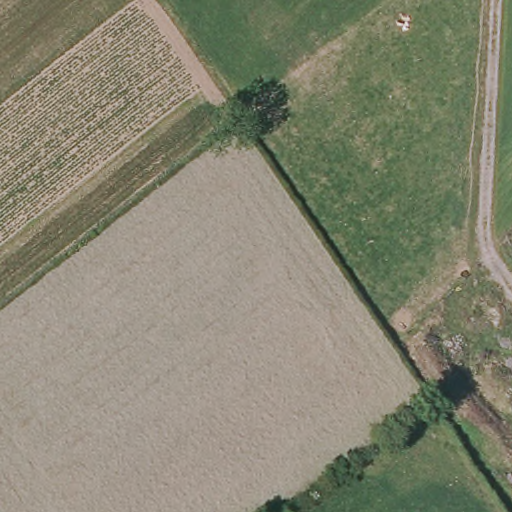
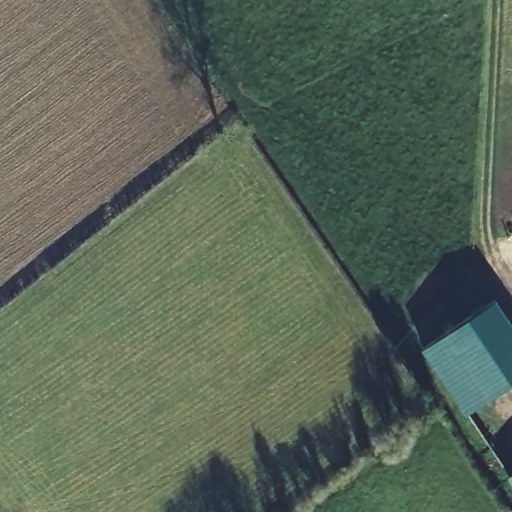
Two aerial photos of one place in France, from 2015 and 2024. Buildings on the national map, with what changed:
new [(512,384),(466,415),(424,351),(498,301),(512,321),(512,384)]
unchanged [(512,475),(512,477),(511,476),(512,475)]

